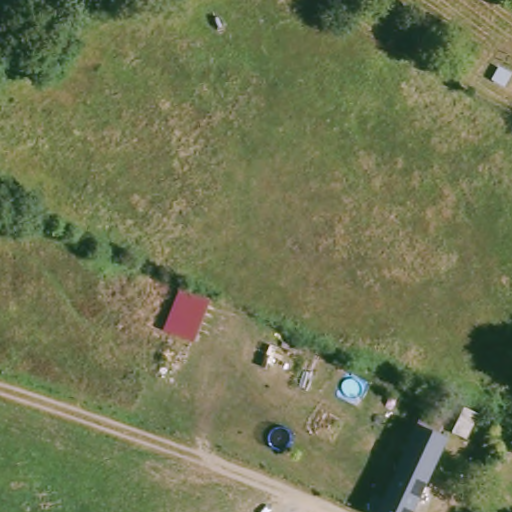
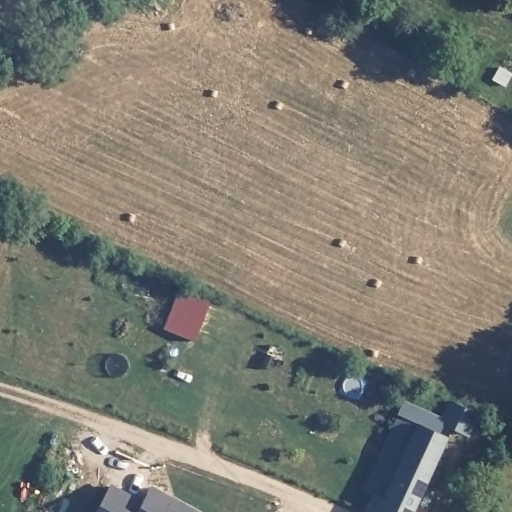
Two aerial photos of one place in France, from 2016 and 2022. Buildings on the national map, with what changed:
unchanged [(193,340),(163,331),(179,288),(208,301),(193,340)]
unchanged [(473,434),(449,423),(443,435),(451,439),(417,512),(371,512),(379,495),(387,499),(399,475),(429,411),(448,420),(457,400),(457,399),(483,411),(483,412),(473,434)]
new [(97,512),(111,484),(144,500),(152,485),(198,512),(97,512)]

